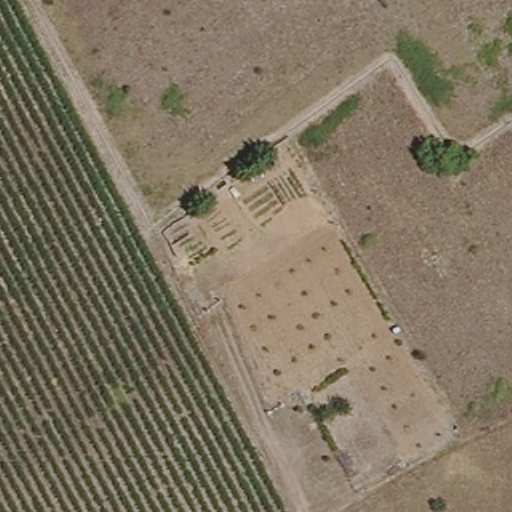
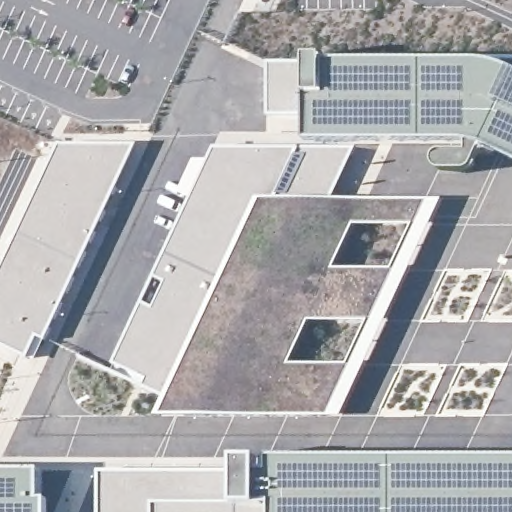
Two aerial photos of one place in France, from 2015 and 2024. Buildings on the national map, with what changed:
new [(475,165),(473,169),(469,172),(442,172),(437,169),(435,163),(436,159),(439,155),(442,153),(468,153),(467,142),(309,141),(308,111),(268,114),(268,62),(308,58),(325,57),(325,63),(471,62),(488,63),(506,67),(507,64),(512,64),(512,158),(483,145),(475,165)]
new [(27,355),(0,342),(0,273),(60,146),(134,146),(45,337),(37,334),(27,355)]
new [(342,417),(159,417),(168,395),(145,386),(148,379),(113,362),(214,148),(352,150),(330,201),(442,199),(342,417)]
new [(99,471),(237,469),(236,459),(257,459),(512,460),(512,512),(99,512),(99,471)]
new [(40,472),(40,501),(47,501),(47,512),(0,512),(0,472),(40,472)]

